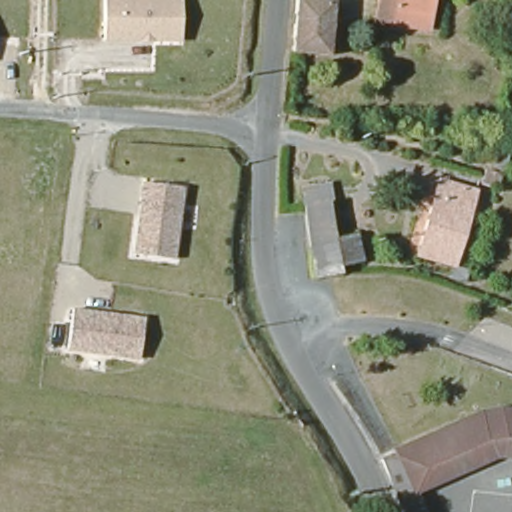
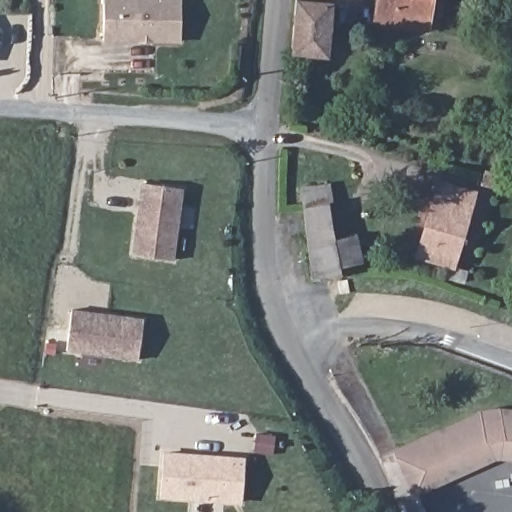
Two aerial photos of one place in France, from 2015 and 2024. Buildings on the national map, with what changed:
unchanged [(104,41),(104,0),(181,0),(179,44),(104,41)]
unchanged [(375,22),(378,0),(394,0),(432,0),(428,30),(391,25),(375,22)]
unchanged [(331,4),(327,56),(292,52),(297,1),(331,4)]
unchanged [(175,260),(134,255),(143,184),(184,189),(175,260)]
unchanged [(419,260),(442,184),(478,195),(454,270),(419,260)]
unchanged [(312,264),(306,207),(331,204),(336,240),(359,238),(363,264),(340,268),(342,274),(331,275),(314,277),(312,264)]
unchanged [(138,360),(69,353),(74,308),(145,315),(138,360)]
unchanged [(490,416),(506,414),(512,415),(512,461),(506,460),(498,461),(474,471),(421,496),(419,496),(401,457),(400,455),(483,417),(490,416)]
new [(160,498),(163,451),(247,457),(243,505),(160,498)]
unchanged [(419,496),(421,496),(428,512),(401,512),(397,499),(383,466),(401,457),(419,496)]

